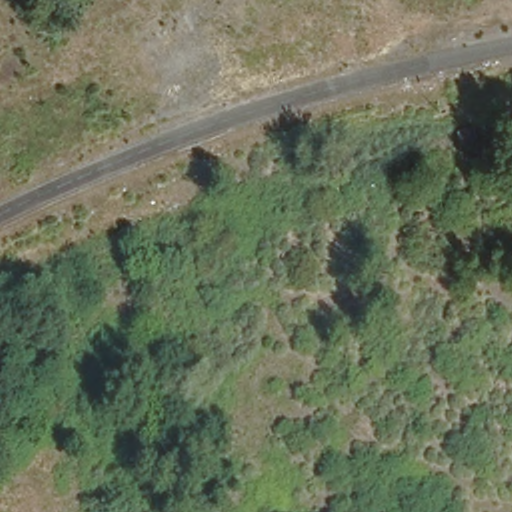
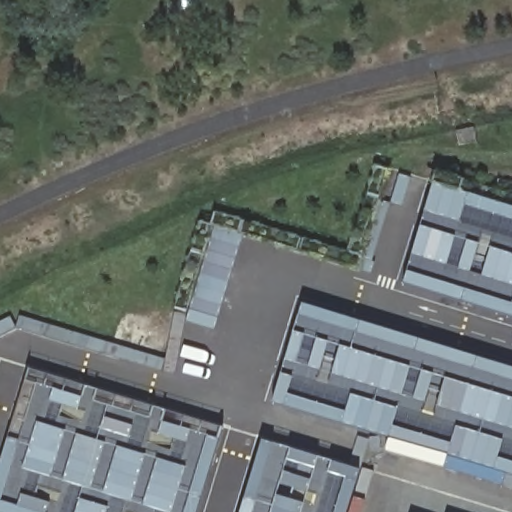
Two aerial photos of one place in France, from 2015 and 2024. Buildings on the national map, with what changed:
unchanged [(473,126),(477,141),(458,145),(456,130),(473,126)]
new [(434,184),(512,208),(512,318),(403,285),(434,184)]
new [(303,306),(512,370),(512,477),(273,404),(303,306)]
new [(0,512),(0,467),(29,371),(223,430),(198,512),(0,512)]
new [(242,512),(263,443),(360,472),(347,512),(242,512)]

